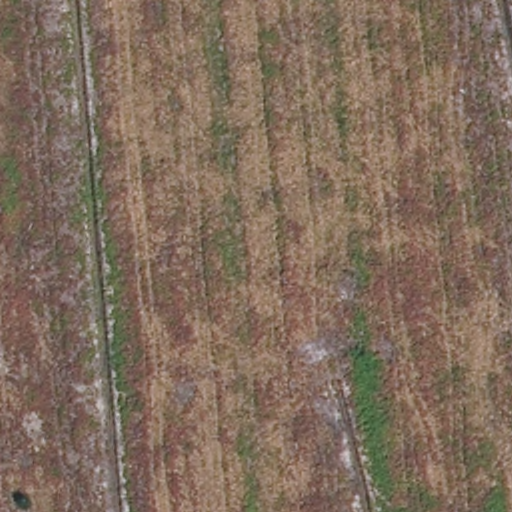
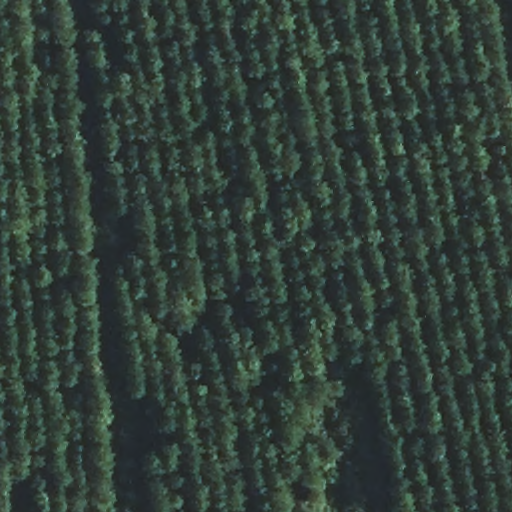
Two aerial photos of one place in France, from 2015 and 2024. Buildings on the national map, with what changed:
[]

